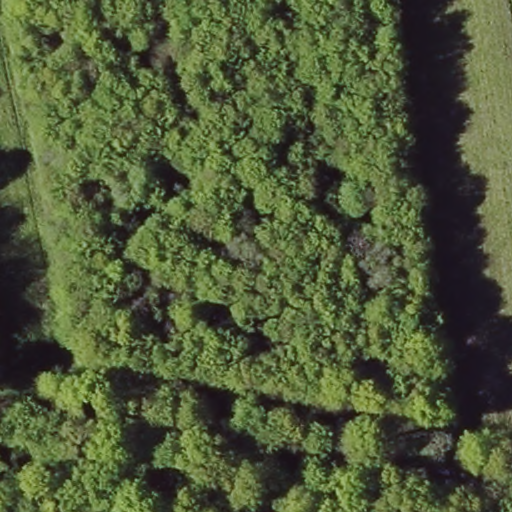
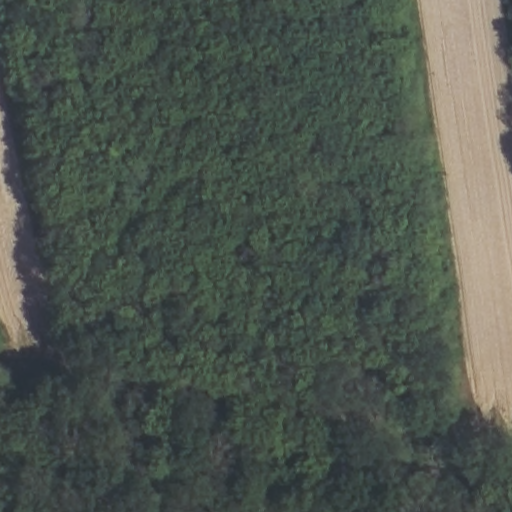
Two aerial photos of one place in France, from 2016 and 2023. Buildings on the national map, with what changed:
[]

